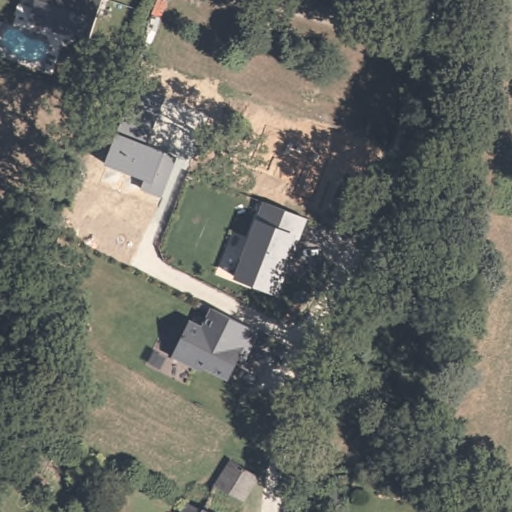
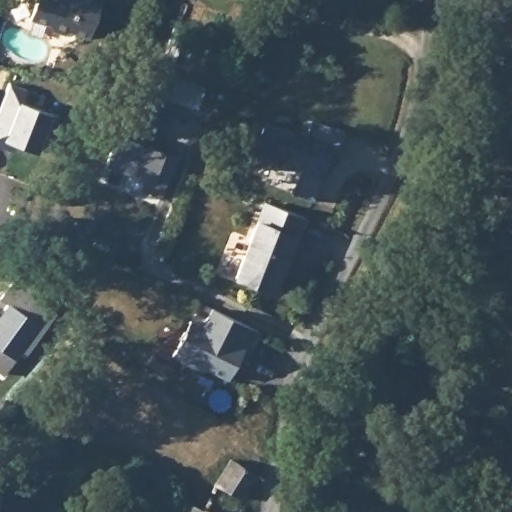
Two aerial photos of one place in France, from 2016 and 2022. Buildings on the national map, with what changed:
unchanged [(69,33),(62,37),(57,34),(54,34),(49,32),(46,26),(28,20),(35,0),(98,0),(87,39),(69,33)]
new [(26,88),(22,102),(51,111),(43,133),(46,135),(40,152),(5,140),(3,148),(0,147),(0,104),(8,82),(26,88)]
unchanged [(149,180),(105,162),(117,132),(136,84),(165,95),(150,144),(163,149),(177,155),(161,196),(141,188),(149,180)]
unchanged [(292,191),(302,168),(272,156),(267,167),(246,160),(252,147),(262,120),(306,135),(311,120),(342,131),(328,170),(324,169),(312,198),(292,191)]
unchanged [(272,291),(234,276),(255,219),(262,199),(308,217),(278,293),(272,291)]
new [(0,299),(0,298),(11,278),(60,308),(25,358),(21,354),(4,375),(0,373),(0,311),(6,302),(0,299)]
unchanged [(258,334),(246,358),(243,364),(237,361),(227,381),(206,369),(200,371),(172,356),(191,321),(202,328),(212,309),(258,334)]
unchanged [(245,502),(219,487),(232,462),(258,478),(245,502)]
unchanged [(347,489),(342,505),(323,499),(325,483),(347,489)]
unchanged [(190,500),(215,512),(184,512),(190,500)]

